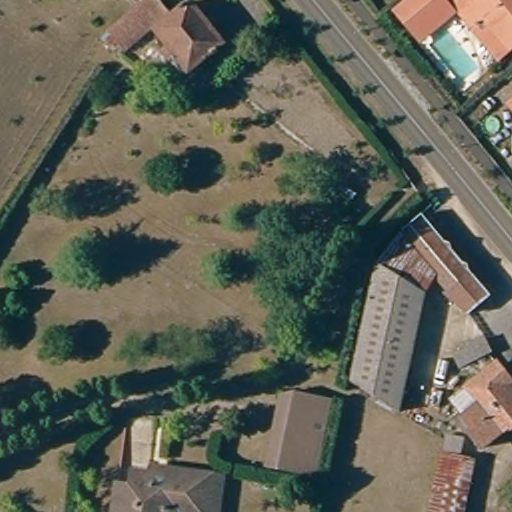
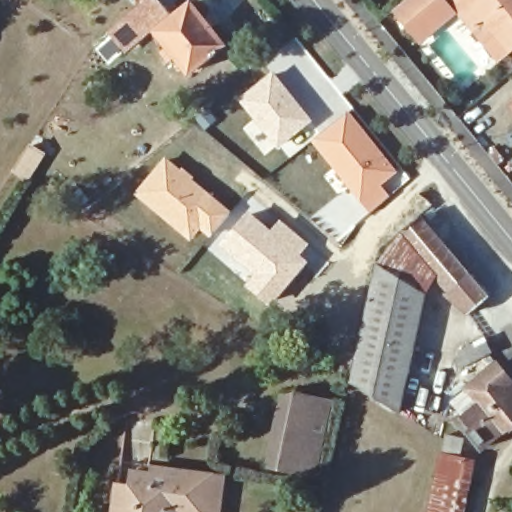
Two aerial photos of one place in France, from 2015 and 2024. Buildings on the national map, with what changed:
unchanged [(175,23),(190,12),(222,50),(189,76),(155,39),(131,57),(121,47),(115,52),(113,50),(112,47),(117,43),(109,32),(136,10),(148,0),(156,0),(175,23)]
unchanged [(430,35),(421,44),(396,12),(410,0),(443,0),(444,2),(441,4),(452,18),(430,35)]
unchanged [(476,30),(454,6),(461,0),(512,0),(512,53),(500,62),(476,30)]
new [(314,121),(279,149),(238,99),(274,70),(314,121)]
new [(349,109),(399,173),(385,185),(392,192),(369,212),(342,182),(309,140),(349,109)]
new [(165,155),(231,211),(209,237),(200,231),(192,242),(133,192),(165,155)]
new [(248,210),(270,229),(279,219),(309,244),(300,254),(309,261),(269,307),(209,251),(248,210)]
unchanged [(384,252),(434,211),(476,261),(481,257),(497,277),(505,286),(473,318),(384,252)]
unchanged [(360,362),(367,332),(381,271),(383,263),(429,298),(419,347),(402,418),(355,385),(360,362)]
unchanged [(489,355),(476,366),(465,353),(479,343),(489,355)]
unchanged [(485,448),(471,433),(476,427),(455,403),(499,365),(512,380),(512,425),(485,448)]
unchanged [(310,476),(276,468),(267,465),(284,397),(294,396),(328,403),(310,476)]
unchanged [(463,440),(459,457),(466,459),(461,483),(434,477),(441,446),(442,439),(442,438),(463,440)]
unchanged [(128,490),(130,477),(150,481),(153,472),(164,473),(219,481),(216,512),(111,512),(115,488),(128,490)]
unchanged [(456,512),(428,512),(434,477),(461,483),(456,512)]

